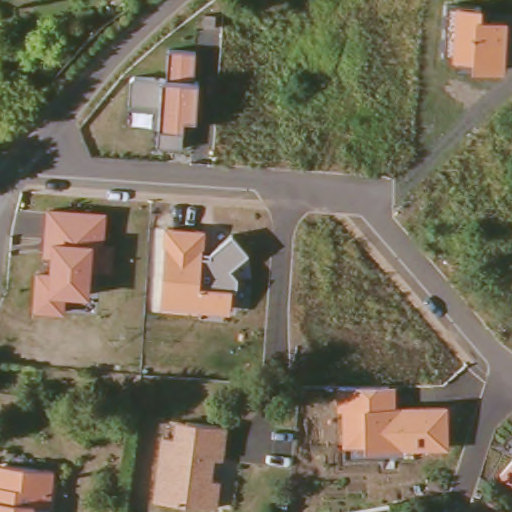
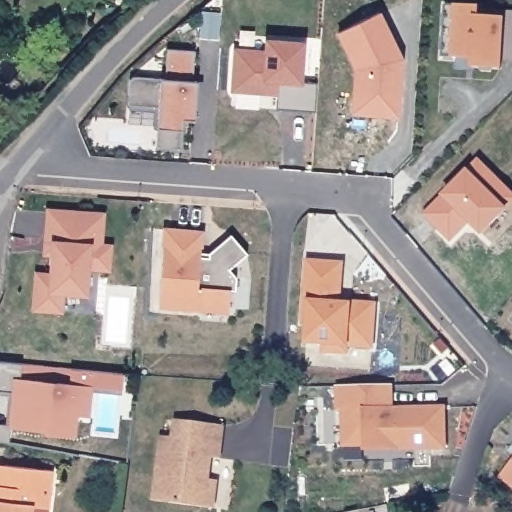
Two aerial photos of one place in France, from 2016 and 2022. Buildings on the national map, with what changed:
unchanged [(455,6),(481,7),(480,17),(507,18),(505,71),(473,68),(473,59),(452,59),(452,56),(445,56),(447,6),(455,6)]
new [(507,11),(512,12),(512,61),(505,61),(507,18),(507,11)]
new [(404,59),(400,118),(350,115),(353,69),(337,33),(380,12),(404,59)]
new [(278,109),(280,89),(266,88),(266,92),(235,90),(237,49),(268,51),(269,39),(306,42),(303,81),(320,82),(317,112),(278,109)]
unchanged [(183,118),(183,129),(182,148),(159,147),(161,106),(130,107),(131,81),(135,77),(162,80),(166,79),(168,48),(195,50),(197,82),(196,118),(183,118)]
new [(512,205),(483,234),(468,221),(451,239),(425,215),(480,161),(512,194),(512,205)]
unchanged [(105,212),(105,243),(112,246),(111,272),(92,270),(90,298),(63,296),(63,313),(32,311),(35,272),(50,271),(50,254),(43,254),(48,209),(105,212)]
unchanged [(248,255),(230,271),(237,279),(236,290),(231,288),(230,315),(160,308),(165,227),(206,230),(205,248),(202,248),(201,252),(211,253),(232,236),(248,255)]
new [(345,261),(342,301),(352,302),(378,303),(375,348),(350,347),(347,347),(346,353),(323,352),(323,345),(305,343),(305,321),(302,320),(306,259),(345,261)]
new [(121,391),(93,388),(90,415),(77,415),(75,436),(43,434),(43,430),(10,428),(9,440),(0,440),(0,424),(7,424),(10,394),(0,393),(0,363),(122,374),(121,391)]
unchanged [(448,451),(403,451),(365,451),(364,443),(343,447),(342,409),(336,410),(337,386),(396,386),(397,408),(447,407),(448,451)]
unchanged [(227,458),(220,458),(216,479),(223,480),(220,507),(159,499),(167,435),(181,437),(183,420),(191,421),(231,427),(227,458)]
unchanged [(512,463),(512,488),(500,478),(512,463)]
unchanged [(1,466),(50,471),(48,493),(46,508),(30,506),(29,512),(0,512),(0,466),(1,466)]

